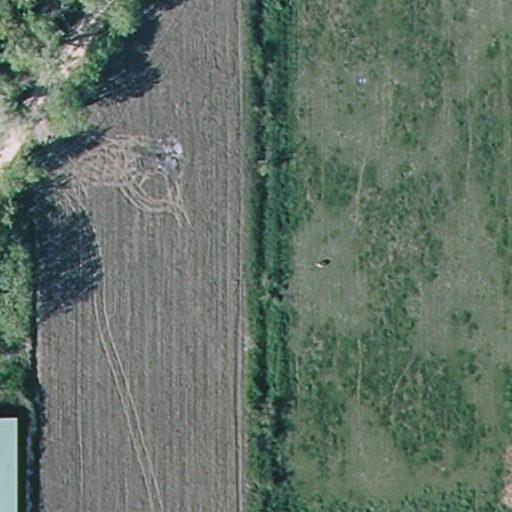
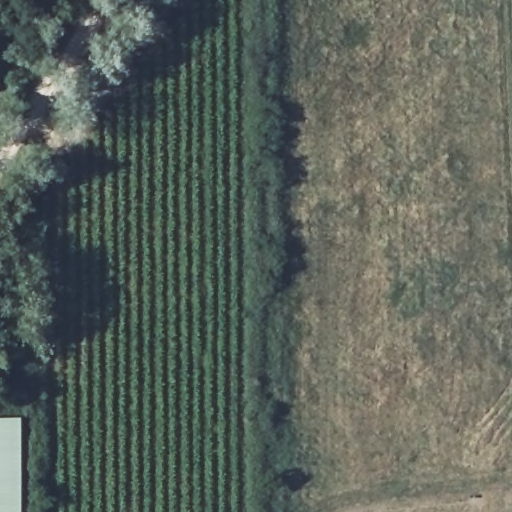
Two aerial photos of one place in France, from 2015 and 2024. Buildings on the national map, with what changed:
unchanged [(22,417),(22,512),(0,512),(0,417),(22,417)]

